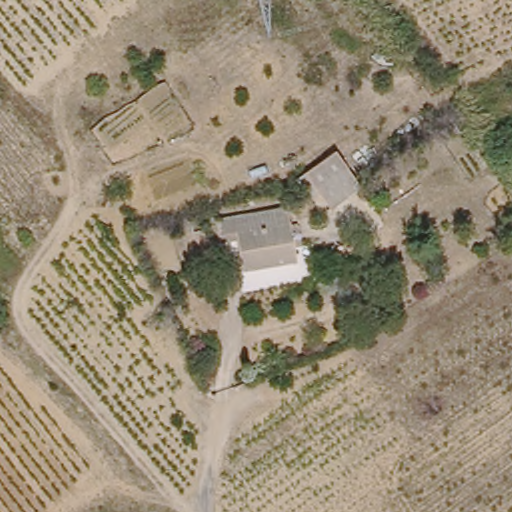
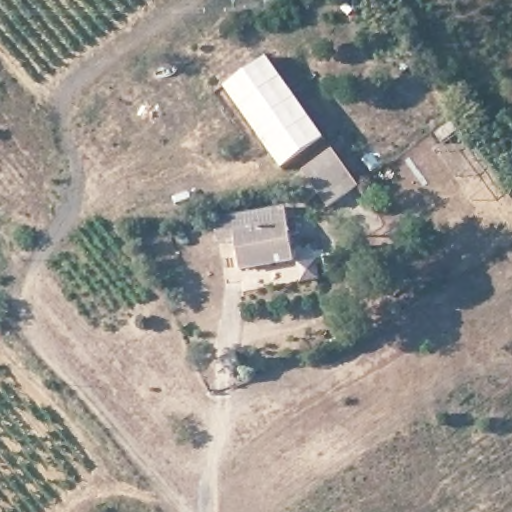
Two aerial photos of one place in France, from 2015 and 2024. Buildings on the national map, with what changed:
new [(284,171),(226,88),(268,58),(327,141),(284,171)]
unchanged [(465,138),(444,154),(433,140),(455,124),(465,138)]
unchanged [(327,209),(307,174),(340,154),(360,190),(327,209)]
unchanged [(294,245),(297,260),(238,273),(231,235),(227,216),(268,207),(273,226),(290,222),(294,245)]

